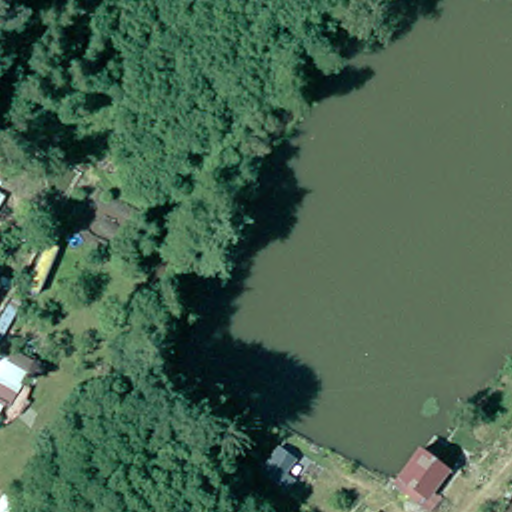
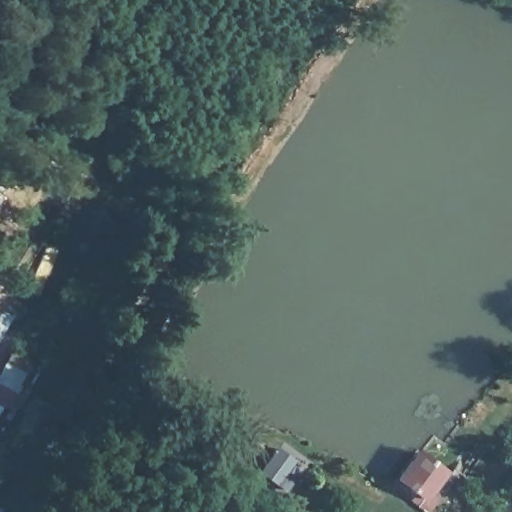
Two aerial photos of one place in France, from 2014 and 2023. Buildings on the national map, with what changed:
unchanged [(420,492),(392,472),(412,444),(440,463),(420,492)]

